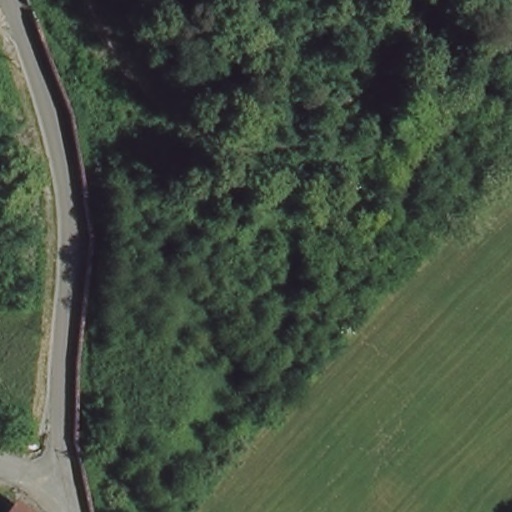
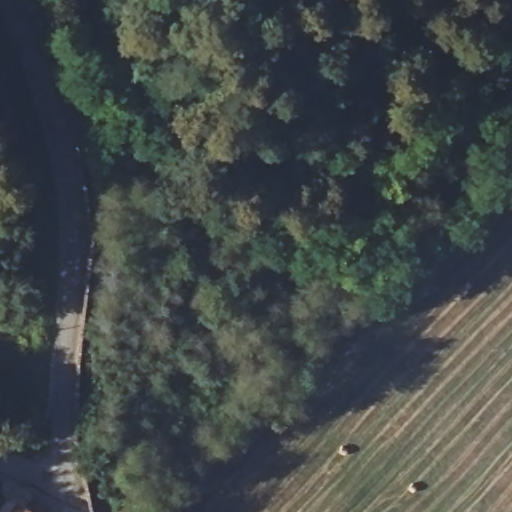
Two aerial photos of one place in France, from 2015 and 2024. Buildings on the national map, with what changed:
unchanged [(30,512),(23,512),(26,508),(30,512)]

